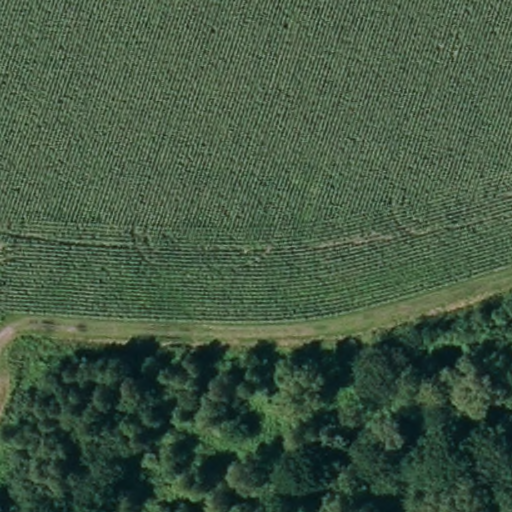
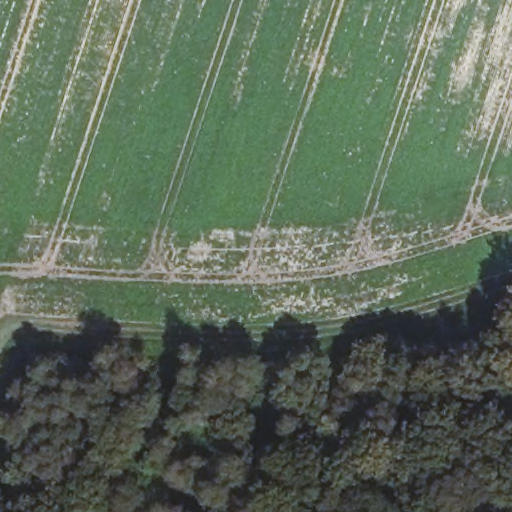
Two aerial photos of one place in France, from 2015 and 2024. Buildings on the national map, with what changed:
[]

